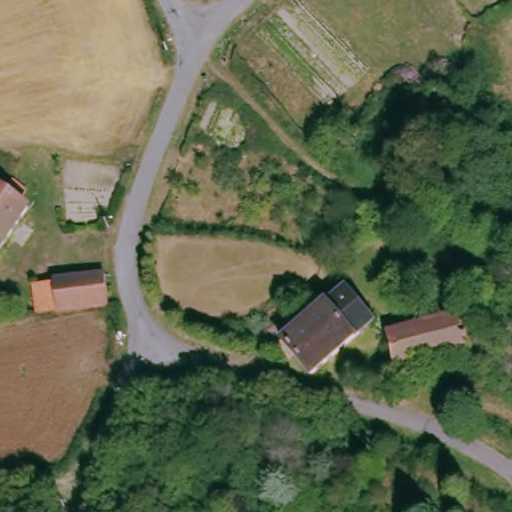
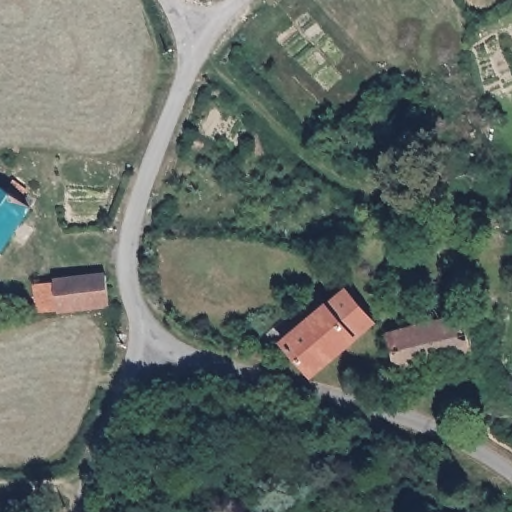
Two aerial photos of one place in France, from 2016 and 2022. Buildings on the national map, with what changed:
unchanged [(6,181),(19,189),(13,200),(23,206),(0,240),(0,189),(6,181)]
unchanged [(33,287),(49,285),(49,282),(97,275),(101,302),(53,311),(36,313),(33,287)]
unchanged [(301,367),(286,347),(273,353),(266,342),(353,293),(373,326),(301,367)]
unchanged [(456,316),(464,353),(387,371),(378,332),(456,316)]
unchanged [(512,378),(512,381),(511,379),(512,378)]

